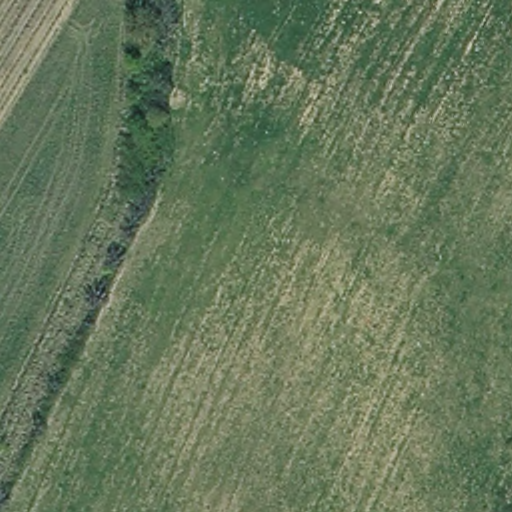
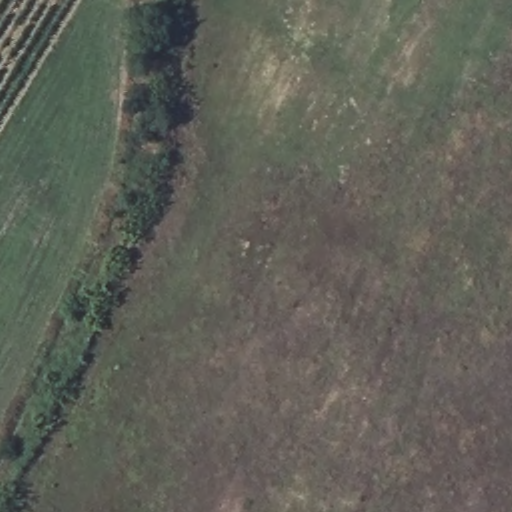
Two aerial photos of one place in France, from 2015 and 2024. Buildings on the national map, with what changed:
[]

